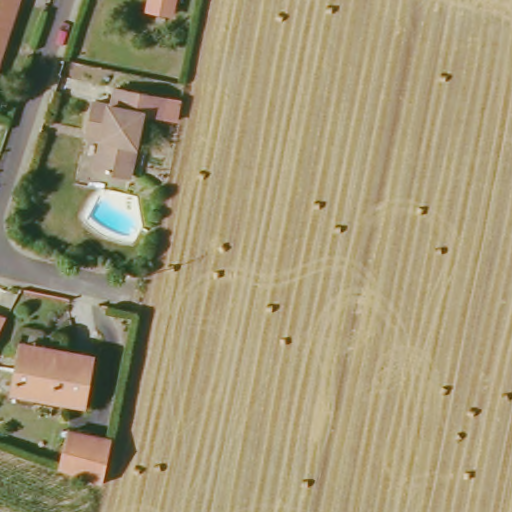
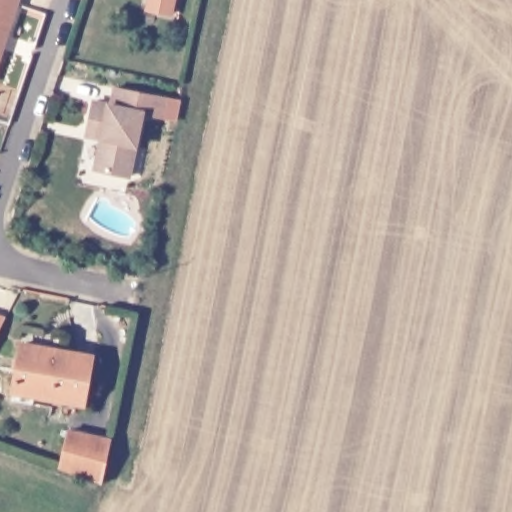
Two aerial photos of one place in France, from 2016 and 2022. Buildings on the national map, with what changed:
unchanged [(6,68),(0,86),(0,0),(28,0),(6,68)]
unchanged [(178,15),(154,9),(156,0),(181,0),(178,15)]
unchanged [(177,119),(144,113),(132,177),(101,171),(107,131),(90,128),(96,101),(115,106),(119,84),(182,99),(177,119)]
unchanged [(84,407),(16,395),(25,348),(91,360),(84,407)]
unchanged [(108,486),(67,469),(75,434),(116,444),(108,486)]

